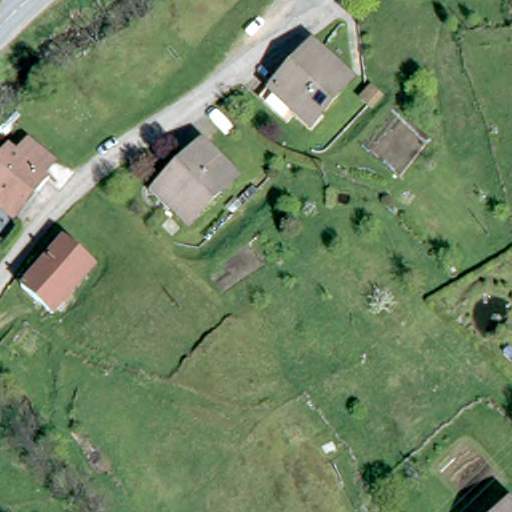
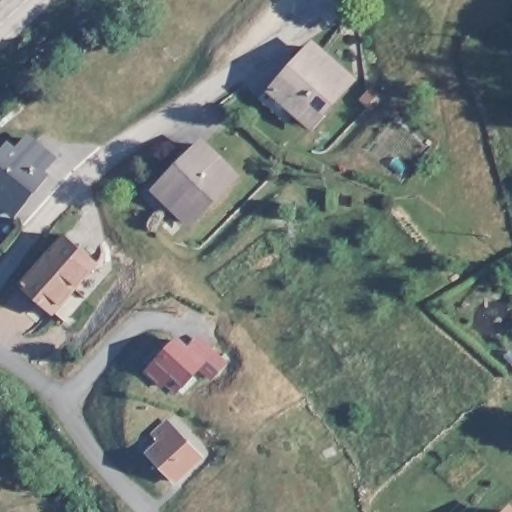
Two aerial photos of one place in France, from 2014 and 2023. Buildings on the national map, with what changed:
unchanged [(319,124),(309,114),(295,128),(271,103),(322,50),(357,83),(319,124)]
unchanged [(14,145),(21,152),(35,139),(59,162),(48,173),(53,179),(20,215),(0,198),(0,159),(14,145)]
unchanged [(232,179),(191,223),(159,191),(200,146),(232,179)]
unchanged [(94,268),(50,314),(20,288),(62,240),(94,268)]
new [(227,361),(210,380),(200,370),(175,395),(166,384),(164,387),(145,371),(178,335),(190,344),(198,335),(227,361)]
new [(205,456),(175,484),(139,446),(167,418),(205,456)]

